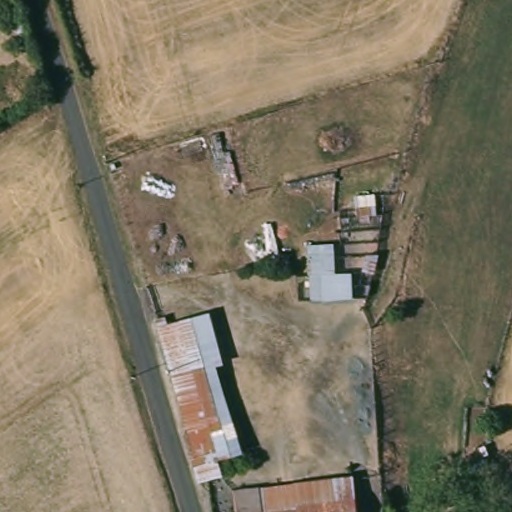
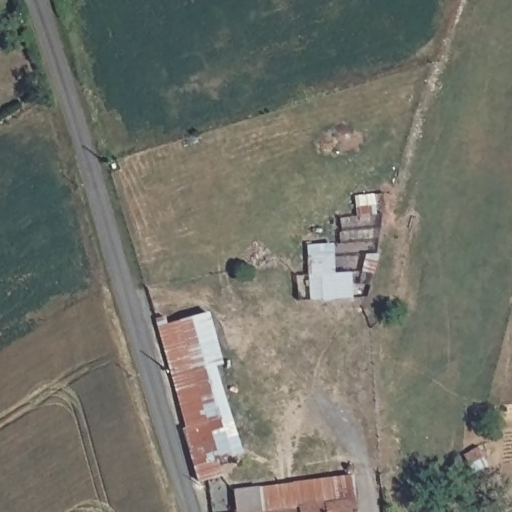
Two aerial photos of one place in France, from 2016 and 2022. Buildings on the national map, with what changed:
unchanged [(309,305),(307,260),(320,260),(331,260),(331,273),(349,273),(351,297),(309,305)]
unchanged [(180,320),(208,312),(222,363),(214,365),(233,423),(241,453),(220,458),(180,320)]
unchanged [(188,485),(184,470),(184,469),(173,432),(178,431),(149,327),(180,320),(224,475),(188,485)]
unchanged [(487,456),(474,462),(470,453),(483,447),(487,456)]
unchanged [(227,492),(257,487),(348,475),(351,503),(293,512),(258,512),(257,505),(229,509),(227,492)]
unchanged [(351,503),(353,512),(293,512),(351,503)]
unchanged [(229,509),(257,505),(258,512),(230,512),(229,509)]

